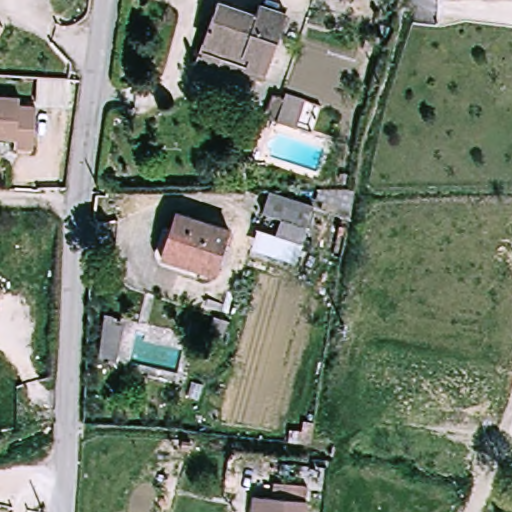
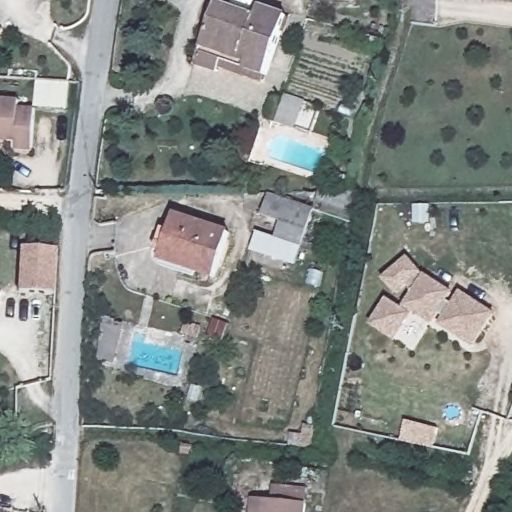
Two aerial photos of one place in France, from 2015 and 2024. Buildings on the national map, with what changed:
unchanged [(224,67),(221,73),(199,65),(222,4),(260,18),(264,7),(290,17),(268,78),(266,83),(224,67)]
unchanged [(72,109),(40,109),(37,154),(17,151),(17,141),(0,140),(0,98),(38,102),(40,79),(72,81),(72,109)]
unchanged [(264,121),(273,97),(284,102),(276,125),(264,121)]
unchanged [(278,236),(285,216),(266,210),(272,192),(319,207),(306,245),(278,236)]
unchanged [(350,212),(316,202),(318,194),(357,193),(350,212)]
unchanged [(160,260),(175,215),(228,232),(213,277),(160,260)]
new [(25,249),(60,251),(58,296),(23,294),(25,249)]
new [(386,300),(401,310),(413,291),(404,285),(395,292),(383,278),(406,258),(419,272),(450,292),(445,300),(452,305),(459,292),(492,313),(472,346),(439,325),(443,317),(436,313),(430,323),(411,311),(393,340),(370,325),(386,300)]
unchanged [(7,295),(0,306),(0,290),(7,295)]
unchanged [(99,361),(102,320),(117,323),(116,331),(122,332),(114,365),(99,361)]
unchanged [(179,336),(183,322),(201,328),(197,342),(179,336)]
unchanged [(303,437),(304,427),(313,427),(311,444),(308,446),(290,446),(292,436),(303,437)]
unchanged [(308,512),(256,512),(257,495),(267,495),(276,496),(278,481),(310,484),(308,512)]

